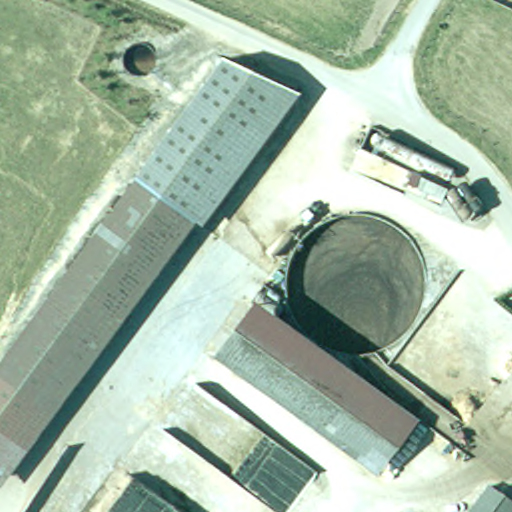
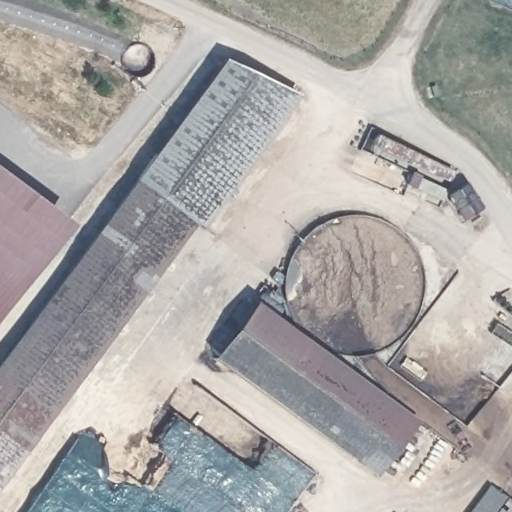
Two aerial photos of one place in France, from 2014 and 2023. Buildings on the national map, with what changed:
unchanged [(282,84),(0,463),(0,358),(225,57),(282,84)]
new [(70,222),(0,317),(0,171),(70,222)]
unchanged [(470,186),(483,204),(462,217),(449,199),(470,186)]
unchanged [(207,352),(249,301),(412,416),(372,468),(207,352)]
unchanged [(512,502),(512,512),(461,512),(485,481),(512,502)]

